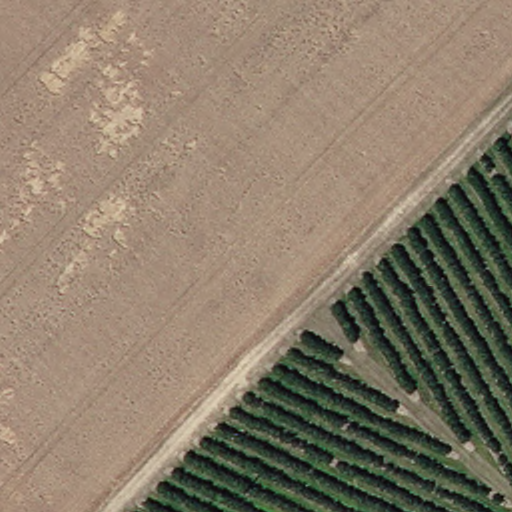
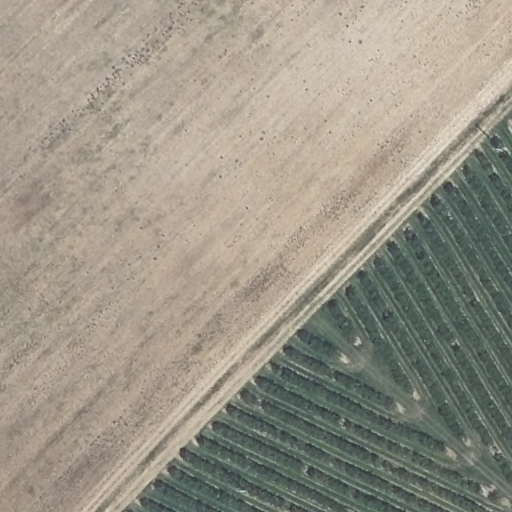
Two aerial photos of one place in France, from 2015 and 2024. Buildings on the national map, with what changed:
[]

